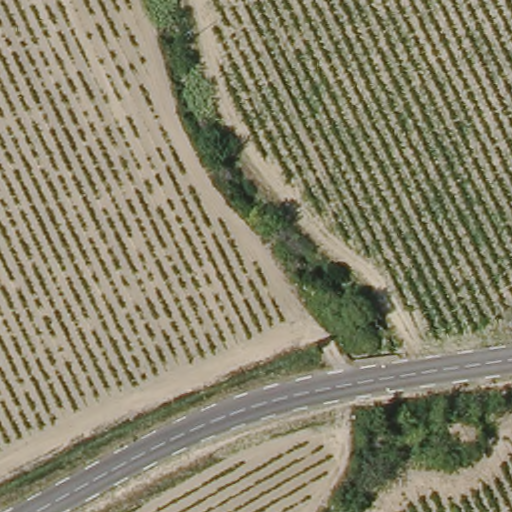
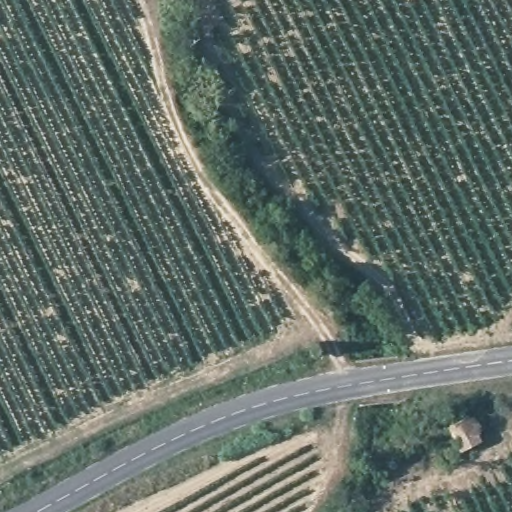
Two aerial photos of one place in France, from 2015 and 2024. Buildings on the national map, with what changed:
unchanged [(467,443),(461,424),(476,419),(483,437),(467,443)]

